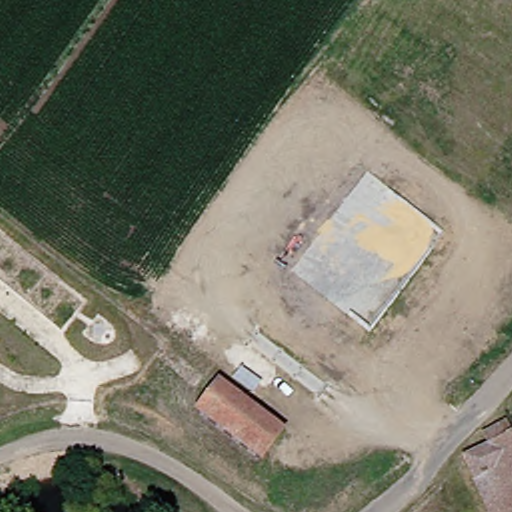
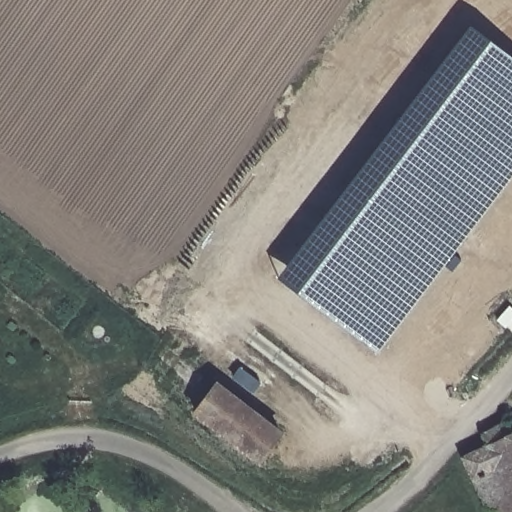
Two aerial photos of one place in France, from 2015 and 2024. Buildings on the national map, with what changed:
new [(471,24),(512,56),(512,178),(379,352),(278,277),(471,24)]
unchanged [(253,461),(215,432),(188,412),(209,384),(234,403),(274,433),(253,461)]
unchanged [(507,442),(512,440),(512,512),(484,512),(472,484),(462,461),(483,451),(476,434),(499,425),(507,442)]

